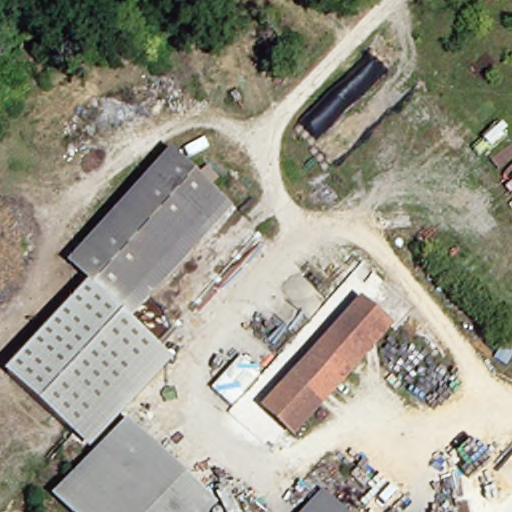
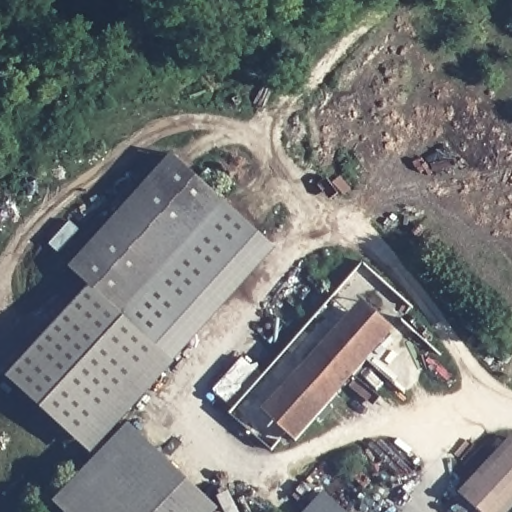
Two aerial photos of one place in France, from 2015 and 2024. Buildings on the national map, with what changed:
unchanged [(114,313),(89,289),(86,288),(69,273),(176,161),(222,205),(116,315),(114,313)]
new [(222,205),(276,249),(167,365),(116,315),(222,205)]
unchanged [(116,315),(167,365),(84,453),(3,374),(86,288),(89,289),(114,313),(116,315)]
unchanged [(396,329),(295,444),(259,412),(360,299),(396,329)]
unchanged [(259,377),(230,409),(212,391),(241,359),(259,377)]
unchanged [(132,421),(227,512),(69,512),(56,500),(132,421)]
new [(512,438),(512,508),(508,512),(478,512),(457,493),(511,437),(512,438)]
demolished [(327,493),(348,512),(310,512),(327,493)]
new [(339,512),(308,512),(322,497),(339,512)]

